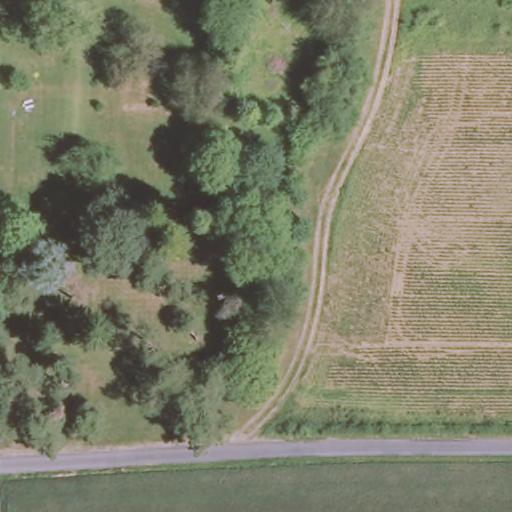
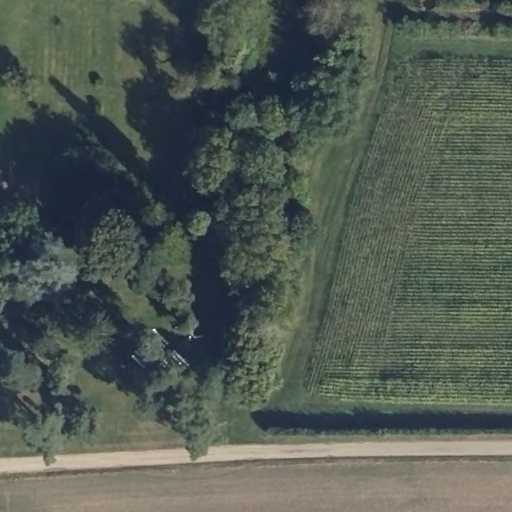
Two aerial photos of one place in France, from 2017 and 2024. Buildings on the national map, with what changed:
[]

